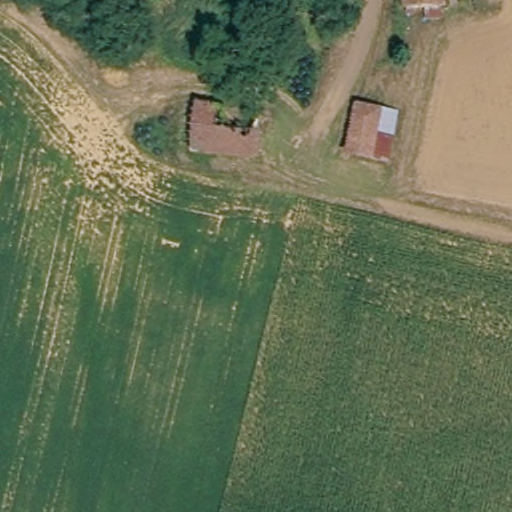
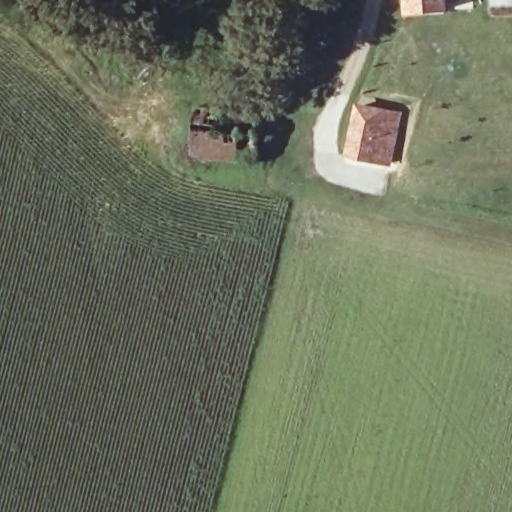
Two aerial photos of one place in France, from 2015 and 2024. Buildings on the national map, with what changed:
unchanged [(445,9),(408,13),(407,0),(444,0),(445,9)]
unchanged [(262,162),(196,160),(200,110),(266,114),(262,162)]
unchanged [(395,118),(388,167),(348,161),(357,111),(395,118)]

